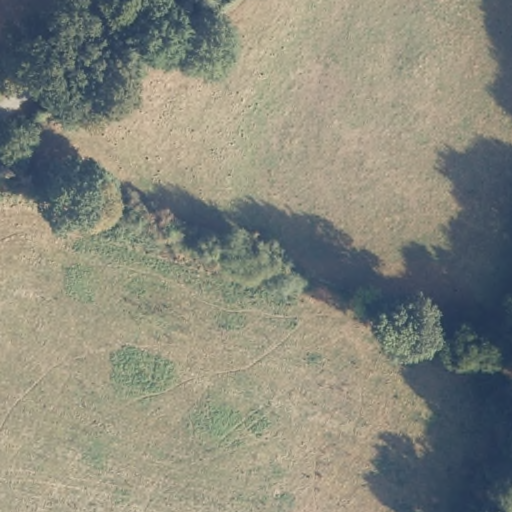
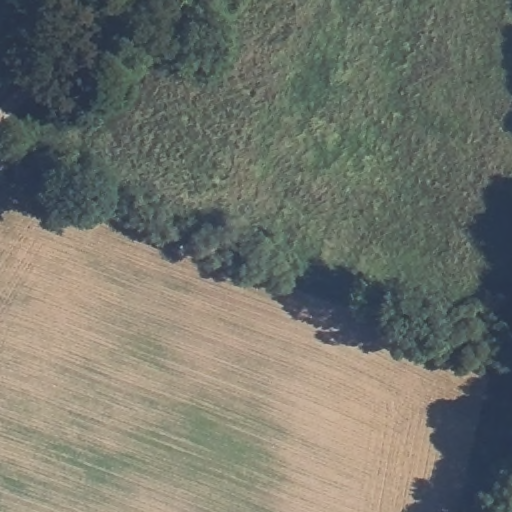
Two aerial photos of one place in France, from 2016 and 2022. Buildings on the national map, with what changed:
[]

